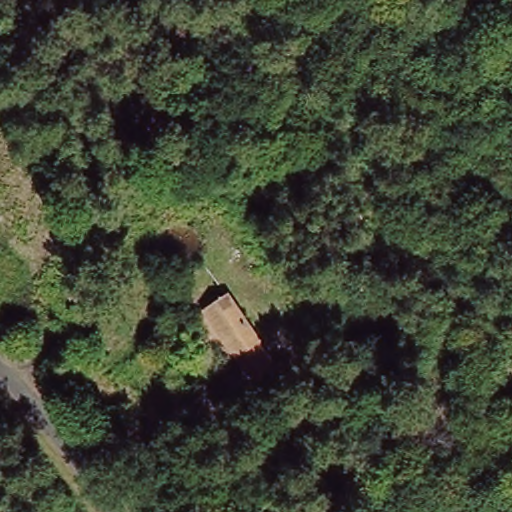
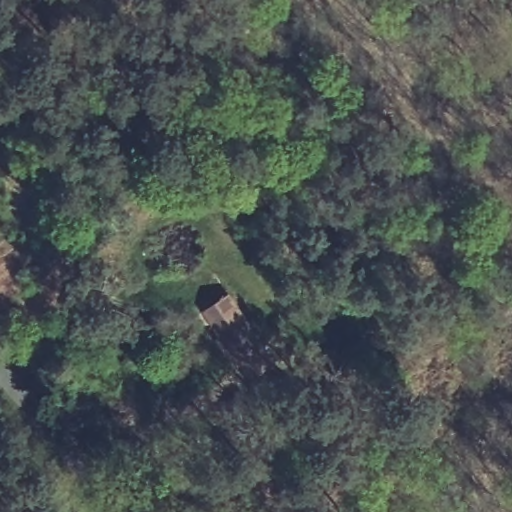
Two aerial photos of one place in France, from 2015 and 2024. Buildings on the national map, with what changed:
unchanged [(205,309),(227,297),(252,344),(230,357),(205,309)]

